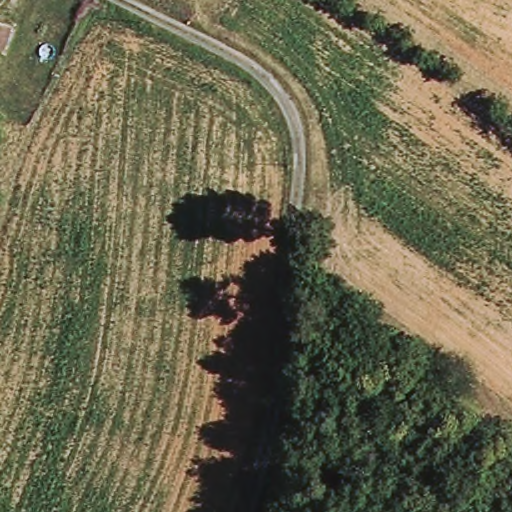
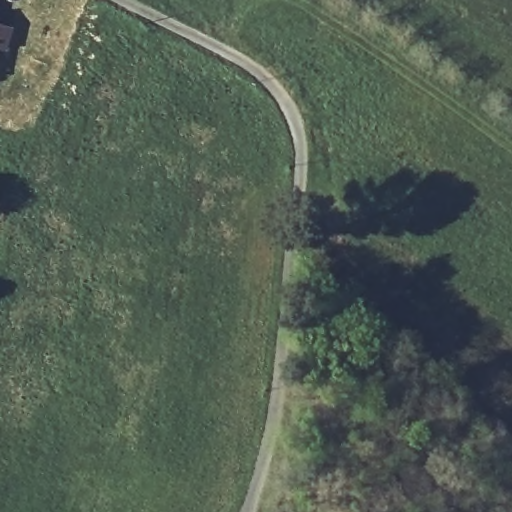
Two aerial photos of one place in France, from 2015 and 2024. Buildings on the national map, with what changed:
unchanged [(4,50),(0,49),(0,23),(10,26),(4,50)]

